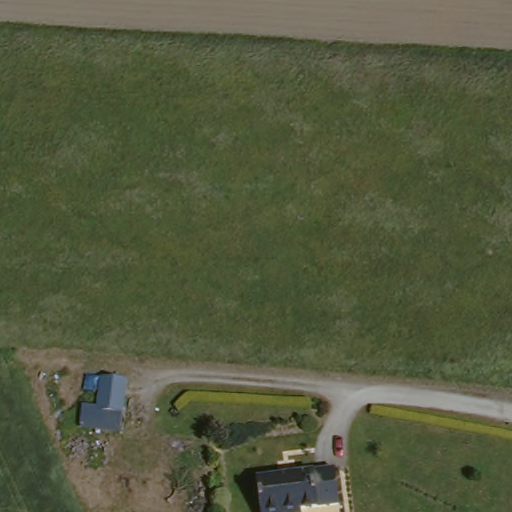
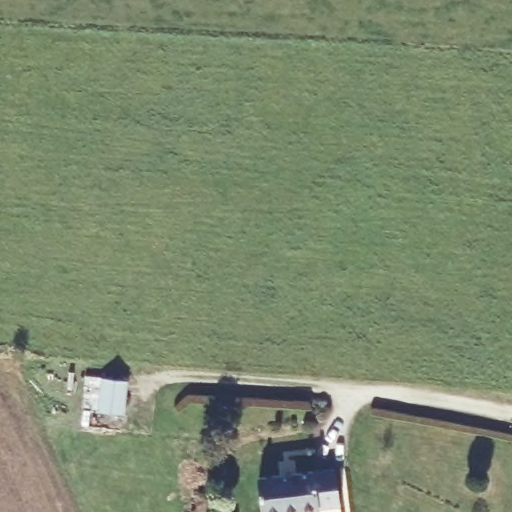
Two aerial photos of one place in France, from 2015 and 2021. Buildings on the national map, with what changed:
unchanged [(78,408),(95,409),(96,380),(125,381),(123,437),(77,435),(78,408)]
unchanged [(258,512),(253,479),(331,471),(335,508),(300,512),(258,512)]

